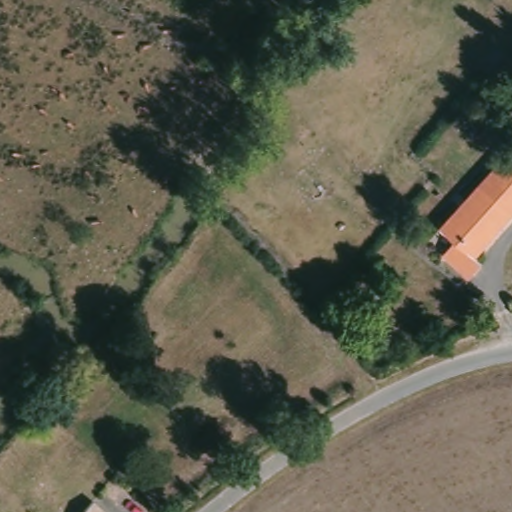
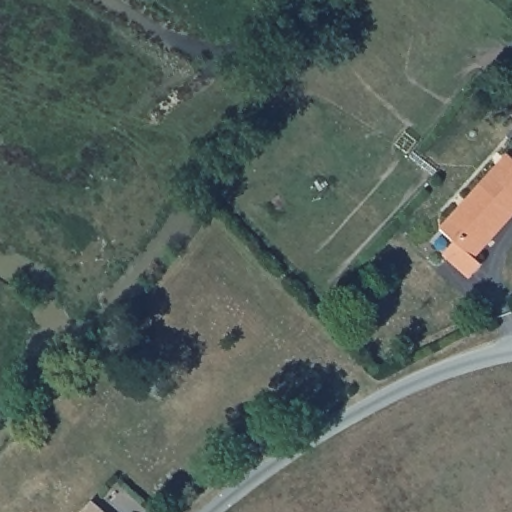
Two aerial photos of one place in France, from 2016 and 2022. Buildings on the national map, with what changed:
unchanged [(498,156),(503,161),(512,149),(512,214),(476,185),(498,156)]
unchanged [(481,269),(470,282),(438,259),(452,245),(437,233),(476,185),(512,214),(512,216),(472,261),(481,269)]
unchanged [(85,504),(92,497),(111,512),(79,512),(85,504)]

